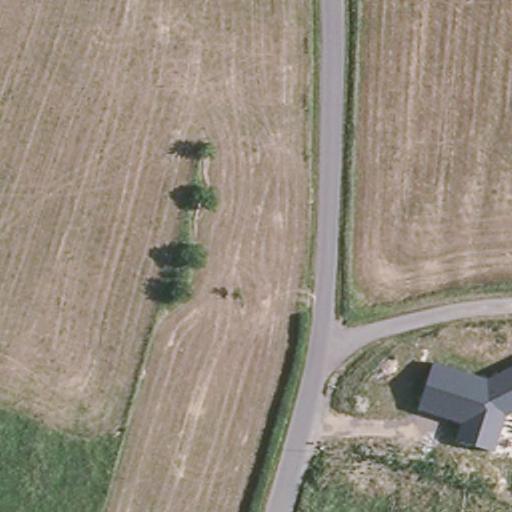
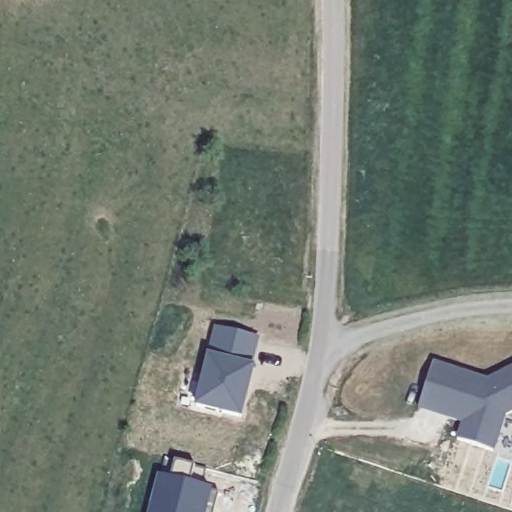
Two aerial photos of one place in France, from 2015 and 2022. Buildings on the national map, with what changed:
new [(214,323),(260,335),(242,415),(194,402),(214,323)]
unchanged [(456,441),(462,424),(421,409),(434,362),(488,379),(512,367),(512,413),(506,416),(494,451),(456,441)]
demolished [(339,431),(383,446),(379,467),(331,451),(339,431)]
new [(212,485),(205,512),(147,512),(156,470),(212,485)]

